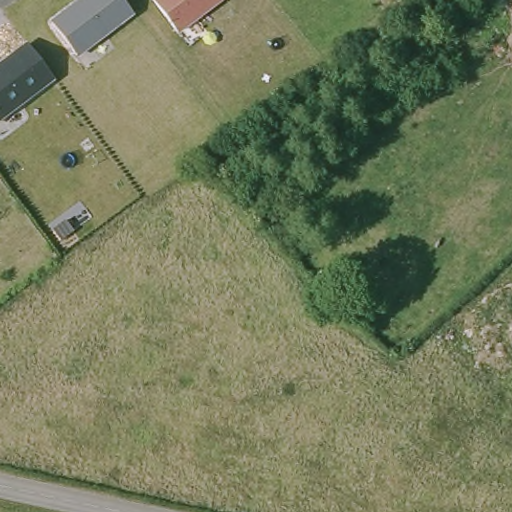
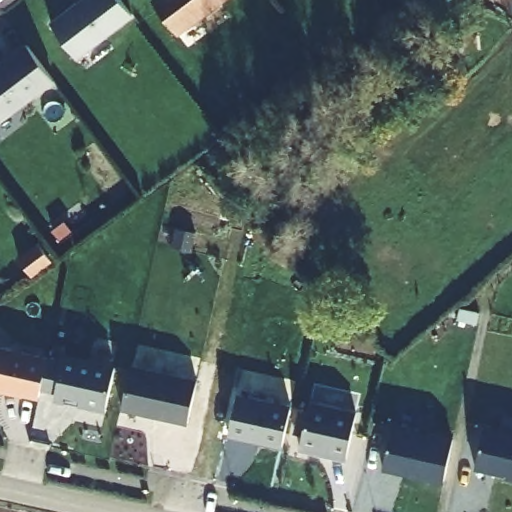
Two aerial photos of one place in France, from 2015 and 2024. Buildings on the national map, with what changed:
unchanged [(133,14),(77,57),(52,24),(70,10),(72,12),(87,0),(122,0),(133,14)]
unchanged [(178,34),(153,2),(156,0),(223,0),(178,34)]
unchanged [(40,62),(55,81),(0,123),(0,69),(29,47),(40,62)]
new [(42,242),(53,258),(32,272),(20,257),(42,242)]
new [(480,312),(477,323),(457,318),(459,308),(480,312)]
new [(65,352),(116,363),(106,410),(55,398),(57,390),(41,387),(39,398),(0,390),(0,345),(63,357),(65,352)]
new [(198,376),(188,420),(125,407),(135,361),(198,376)]
new [(297,446),(232,432),(240,387),(305,403),(297,446)]
new [(357,410),(347,460),(299,449),(310,399),(357,410)]
new [(452,436),(443,481),(382,467),(392,422),(452,436)]
new [(512,429),(512,478),(505,477),(505,475),(475,468),(485,423),(512,429)]

